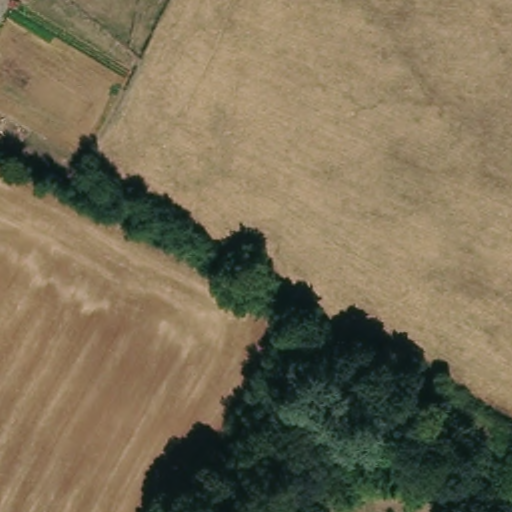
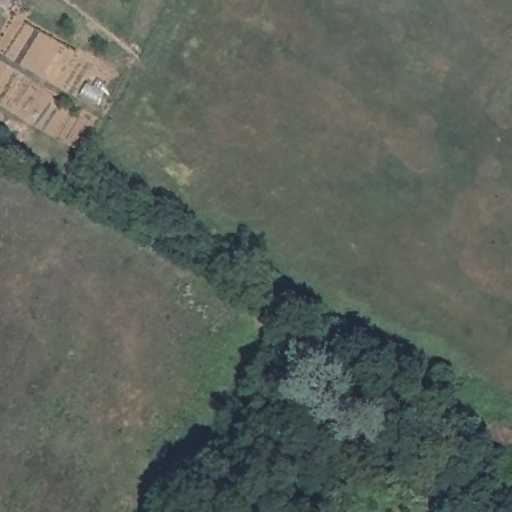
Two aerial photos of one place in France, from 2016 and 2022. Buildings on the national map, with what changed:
unchanged [(512,431),(512,450),(511,451),(435,410),(443,396),(512,431)]
unchanged [(418,462),(472,490),(460,512),(449,512),(405,490),(418,462)]

